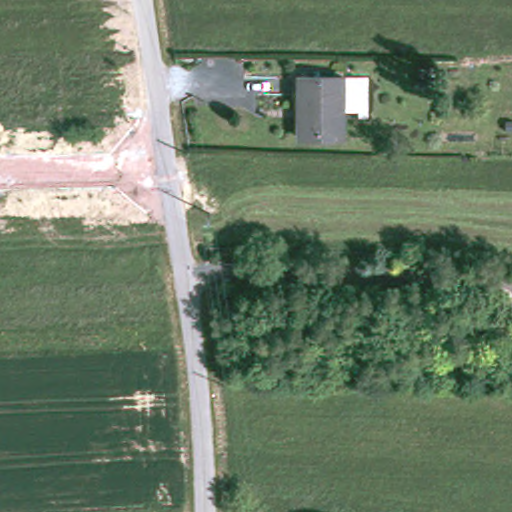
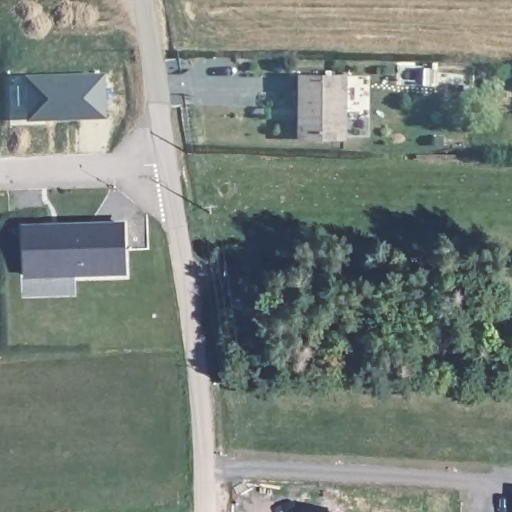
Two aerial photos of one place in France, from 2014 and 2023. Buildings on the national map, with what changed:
unchanged [(307,70),(349,71),(349,132),(306,131),(307,70)]
new [(32,119),(28,115),(27,75),(104,74),(105,117),(58,119),(45,119),(32,119)]
new [(123,223),(126,277),(23,281),(21,227),(123,223)]

